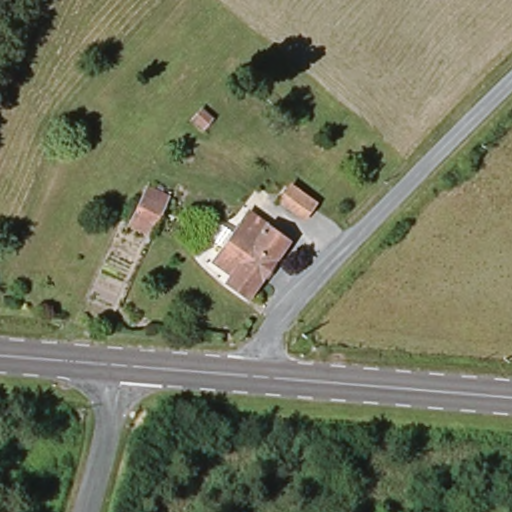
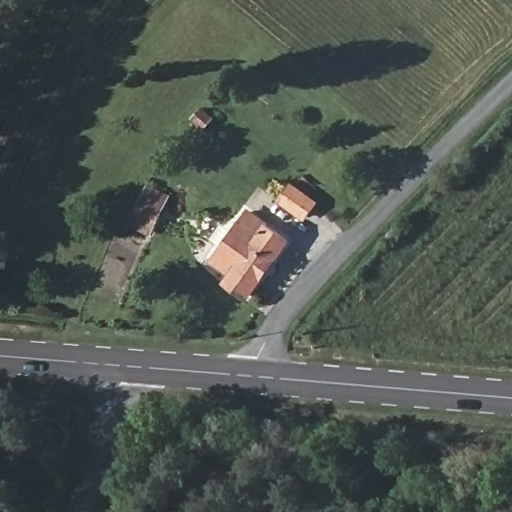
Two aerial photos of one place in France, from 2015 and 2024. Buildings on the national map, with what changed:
unchanged [(132,229),(150,189),(176,197),(154,238),(132,229)]
unchanged [(286,205),(297,191),(320,209),(308,222),(286,205)]
unchanged [(231,283),(236,275),(219,262),(257,212),(296,240),(252,299),(231,283)]

